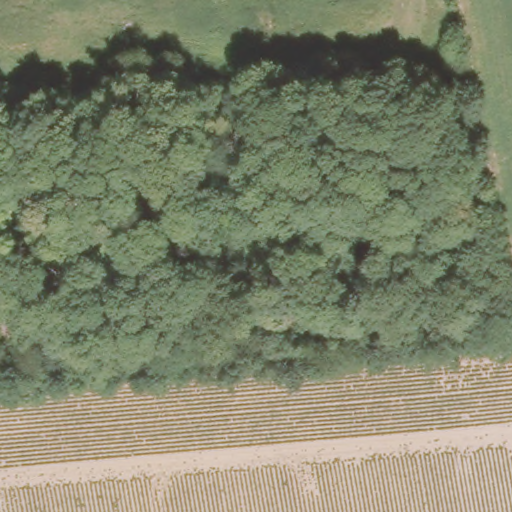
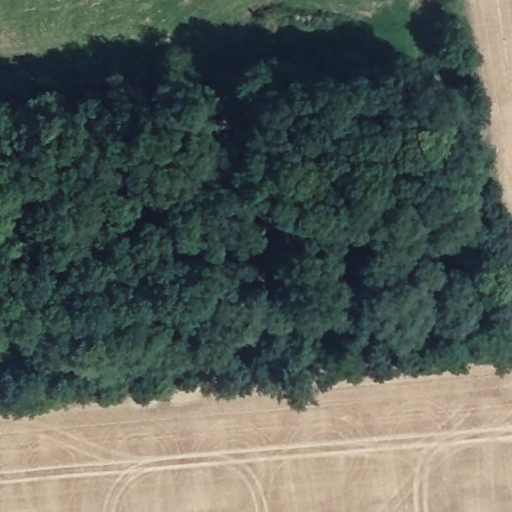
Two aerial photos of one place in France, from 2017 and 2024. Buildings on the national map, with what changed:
unchanged [(420,212),(398,209),(402,180),(425,181),(420,212)]

